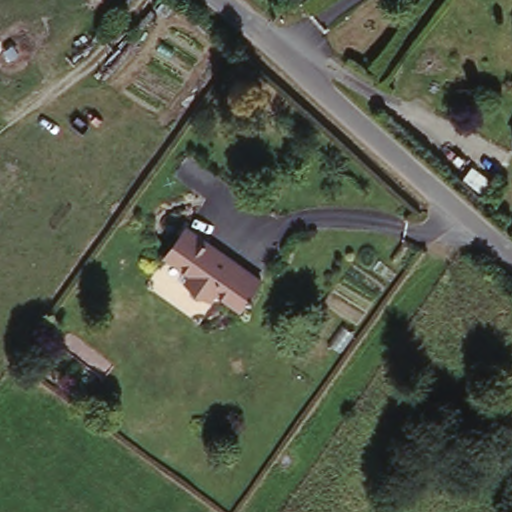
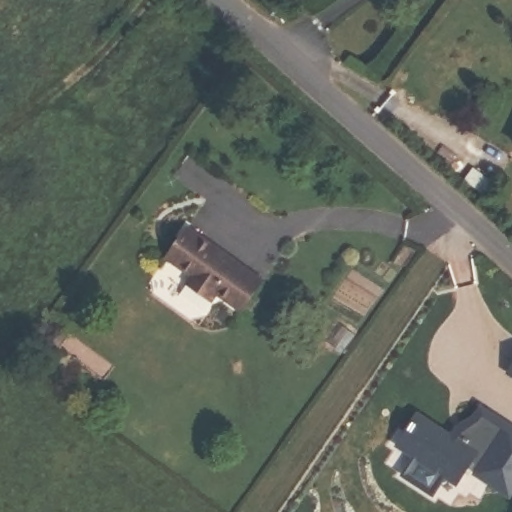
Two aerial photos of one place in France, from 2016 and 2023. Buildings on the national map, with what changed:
unchanged [(263,284),(239,317),(216,301),(209,310),(183,291),(190,281),(163,263),(187,231),(263,284)]
new [(512,364),(512,377),(507,373),(512,364)]
new [(415,414),(449,435),(480,406),(512,427),(512,492),(508,497),(466,470),(456,486),(441,475),(431,493),(402,475),(413,458),(395,446),(415,414)]

